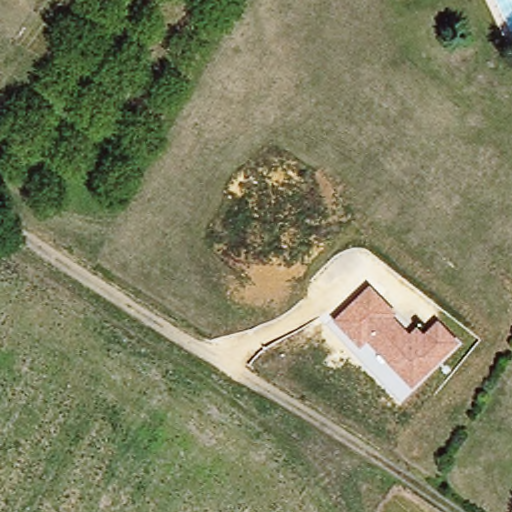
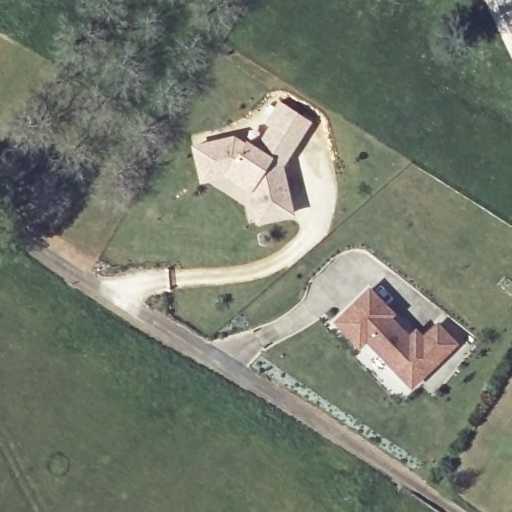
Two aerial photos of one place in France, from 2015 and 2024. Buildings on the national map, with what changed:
new [(245,139),(256,147),(262,139),(272,124),(267,121),(280,100),(310,119),(295,141),(285,155),(280,164),(290,212),(255,219),(249,189),(225,172),(200,177),(193,145),(212,141),(233,136),(243,143),(245,139)]
unchanged [(397,314),(393,318),(410,335),(417,329),(423,335),(437,322),(458,345),(412,389),(367,343),(360,350),(332,322),(369,287),(397,314)]

